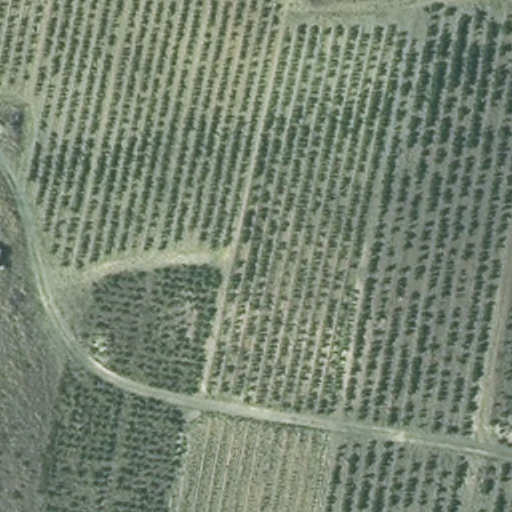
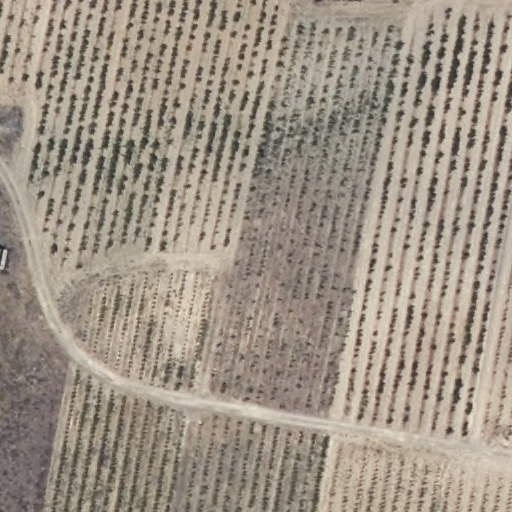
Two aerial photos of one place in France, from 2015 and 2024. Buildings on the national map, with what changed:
unchanged [(12,240),(5,267),(0,266),(0,238),(12,240)]

